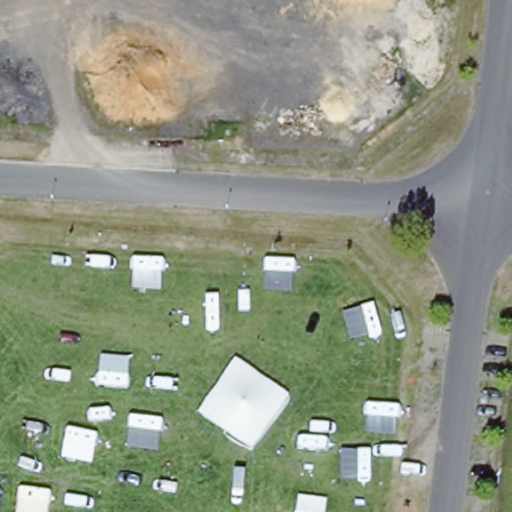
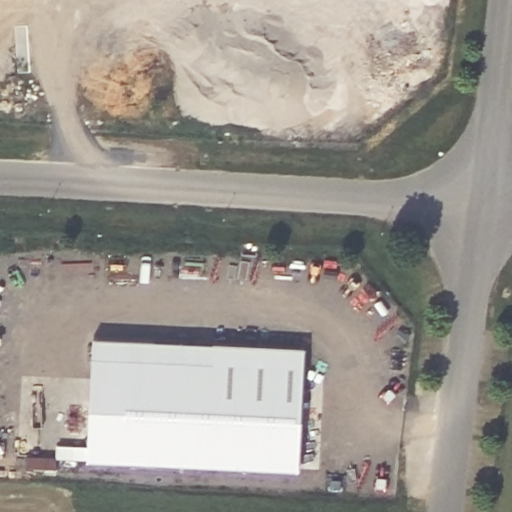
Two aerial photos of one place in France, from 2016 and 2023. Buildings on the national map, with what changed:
new [(300,470),(88,457),(93,336),(305,344),(300,470)]

